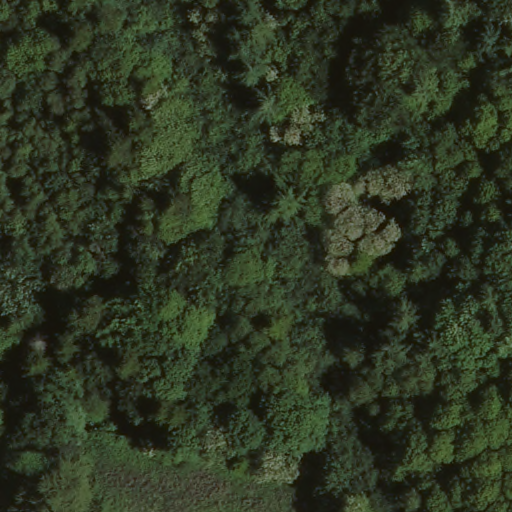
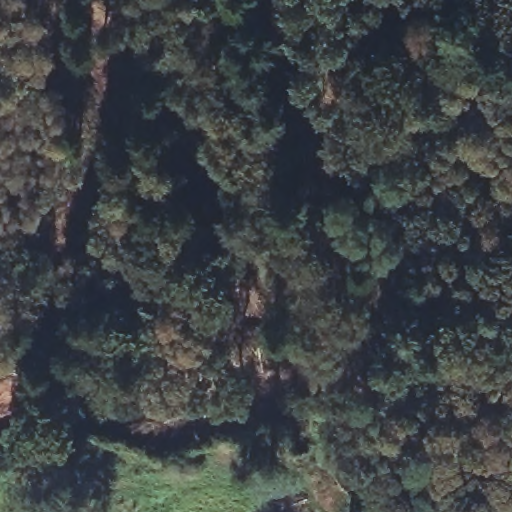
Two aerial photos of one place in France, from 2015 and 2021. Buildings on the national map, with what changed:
[]

